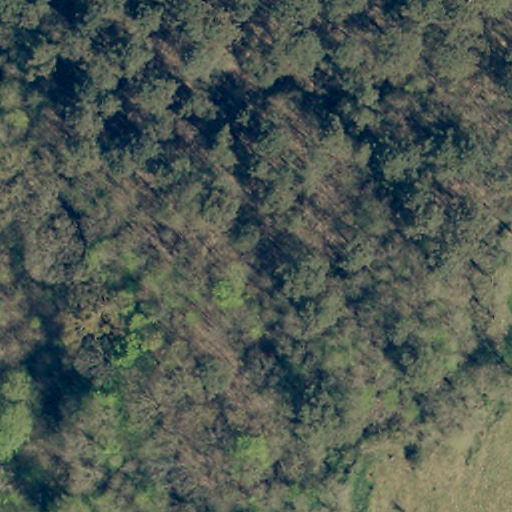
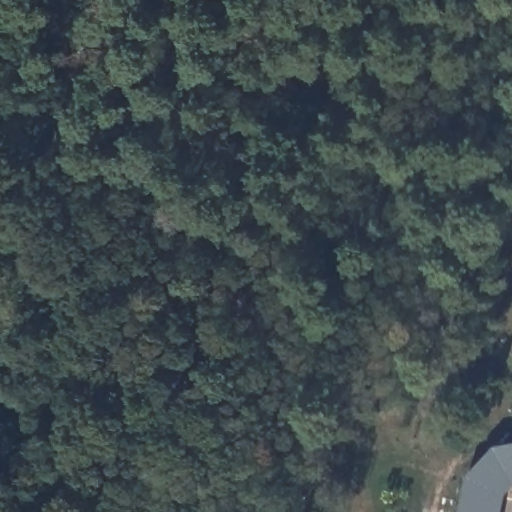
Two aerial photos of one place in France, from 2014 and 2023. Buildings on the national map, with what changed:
new [(468,475),(494,445),(512,442),(512,488),(505,495),(502,512),(460,512),(468,475)]

